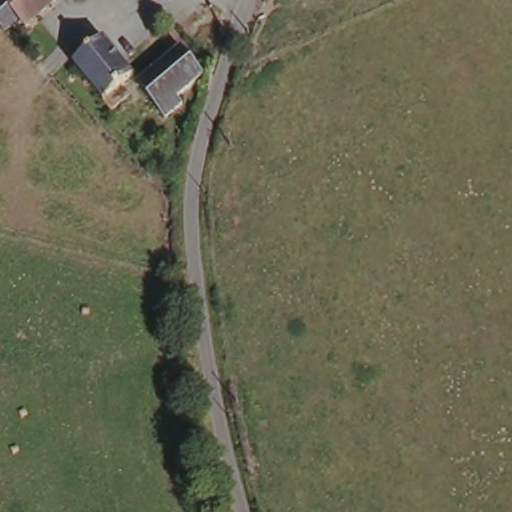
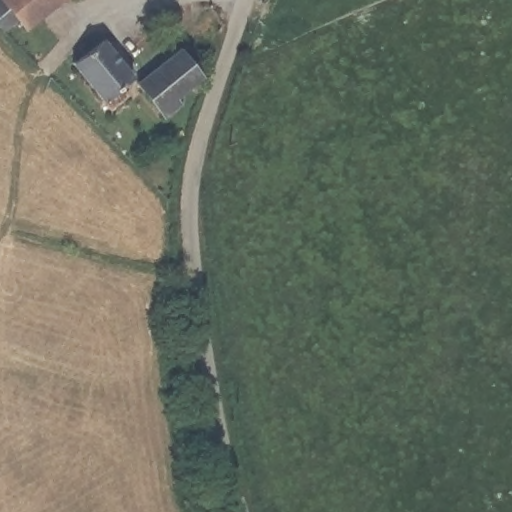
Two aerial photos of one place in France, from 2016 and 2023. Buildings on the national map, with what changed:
unchanged [(20,19),(12,8),(0,15),(0,0),(48,0),(42,4),(20,19)]
unchanged [(185,80),(196,95),(168,115),(137,73),(194,28),(212,53),(207,63),(185,80)]
unchanged [(104,32),(137,75),(107,98),(76,55),(104,32)]

